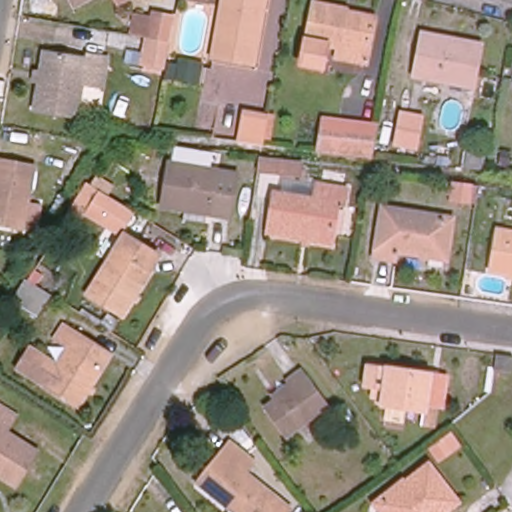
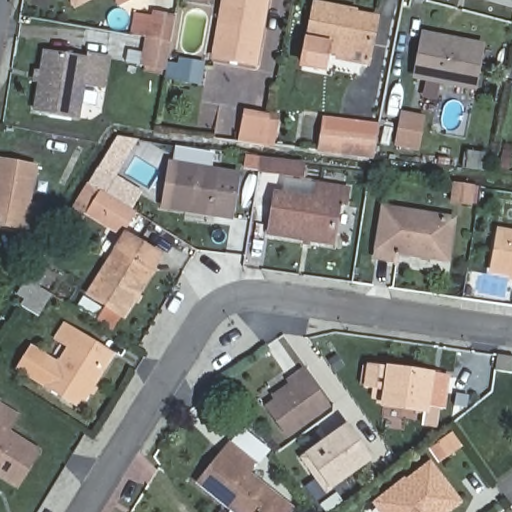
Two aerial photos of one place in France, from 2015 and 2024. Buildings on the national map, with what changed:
unchanged [(75,11),(69,0),(95,0),(75,11)]
unchanged [(206,1),(203,0),(207,0),(206,1)]
unchanged [(254,64),(212,57),(223,0),(266,0),(254,64)]
unchanged [(337,58),(339,48),(327,46),(323,70),(301,65),(313,4),(346,10),(346,13),(375,19),(369,54),(367,64),(337,58)]
unchanged [(141,64),(146,38),(130,35),(134,15),(152,18),(153,13),(175,17),(175,18),(170,42),(165,68),(141,64)]
unchanged [(473,88),(415,77),(423,35),(481,46),(473,88)]
unchanged [(104,88),(84,85),(78,118),(34,110),(44,51),(89,59),(89,55),(109,58),(104,88)]
unchanged [(199,85),(175,80),(178,59),(203,64),(199,85)]
new [(247,111),(273,116),(267,146),(241,143),(247,111)]
unchanged [(416,149),(396,145),(402,114),(422,118),(416,149)]
unchanged [(318,149),(322,120),(357,124),(367,126),(364,147),(354,146),(353,154),(318,149)]
unchanged [(483,171),(465,169),(468,152),(485,155),(483,171)]
unchanged [(508,166),(500,165),(502,152),(511,153),(508,166)]
unchanged [(301,177),(258,173),(259,166),(261,160),(303,164),(301,177)]
unchanged [(34,168),(27,205),(40,207),(36,231),(0,224),(0,161),(34,168)]
unchanged [(230,218),(163,208),(171,164),(237,174),(230,218)]
unchanged [(268,234),(275,194),(281,195),(283,180),(318,186),(346,190),(344,204),(338,203),(331,244),(268,234)]
unchanged [(124,236),(88,214),(76,233),(65,227),(92,185),(97,187),(118,200),(139,213),(124,236)]
unchanged [(468,203),(452,201),(454,186),(470,188),(468,203)]
unchanged [(446,260),(396,253),(395,261),(375,258),(383,209),(452,220),(446,260)]
unchanged [(498,231),(512,233),(512,275),(491,271),(498,231)]
unchanged [(128,315),(94,294),(129,235),(164,256),(128,315)]
unchanged [(37,314),(24,306),(35,288),(48,296),(37,314)]
unchanged [(79,406),(19,368),(31,349),(58,365),(69,347),(56,338),(64,326),(111,356),(79,406)]
unchanged [(497,356),(511,358),(512,358),(512,374),(494,371),(497,356)]
unchanged [(440,419),(429,417),(430,410),(389,404),(391,391),(371,388),(373,368),(393,371),(445,378),(440,419)]
unchanged [(287,436),(266,408),(276,401),(273,397),(290,384),(288,381),(301,372),(327,407),(287,436)]
unchanged [(16,481),(0,471),(0,400),(16,411),(6,428),(37,447),(16,481)]
new [(305,487),(314,481),(298,458),(346,423),(373,460),(316,501),(305,487)]
unchanged [(462,447),(438,463),(428,449),(436,443),(451,432),(462,447)]
unchanged [(235,512),(199,483),(231,444),(254,462),(245,473),(289,509),(287,512),(235,512)]
unchanged [(445,512),(381,512),(375,504),(403,481),(405,483),(429,465),(458,502),(445,512)]

